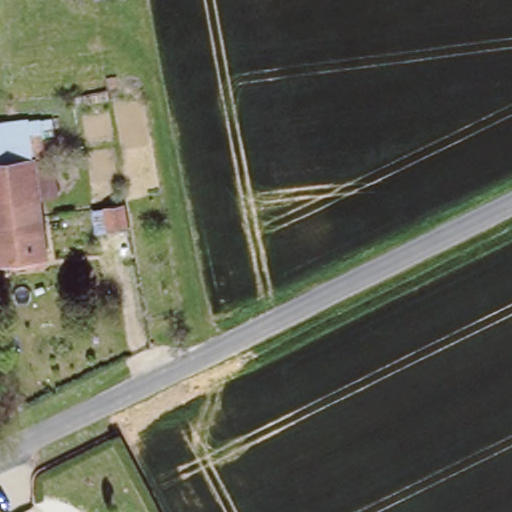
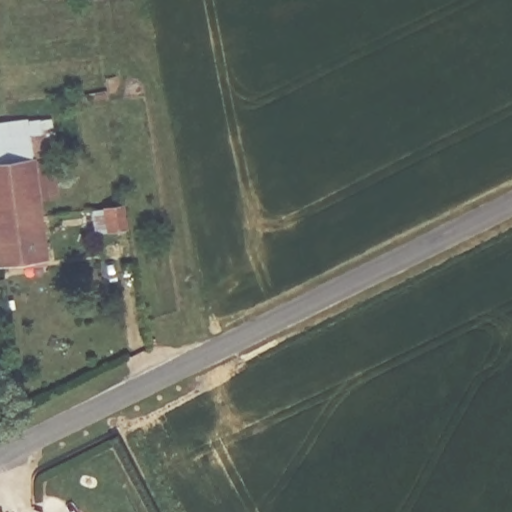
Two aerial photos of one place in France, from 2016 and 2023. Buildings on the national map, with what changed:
unchanged [(1,172),(0,145),(45,141),(46,168),(60,166),(61,185),(40,186),(42,207),(0,211),(0,172),(1,172)]
unchanged [(103,207),(131,206),(133,228),(108,234),(103,207)]
unchanged [(46,263),(0,267),(0,211),(42,207),(46,263)]

